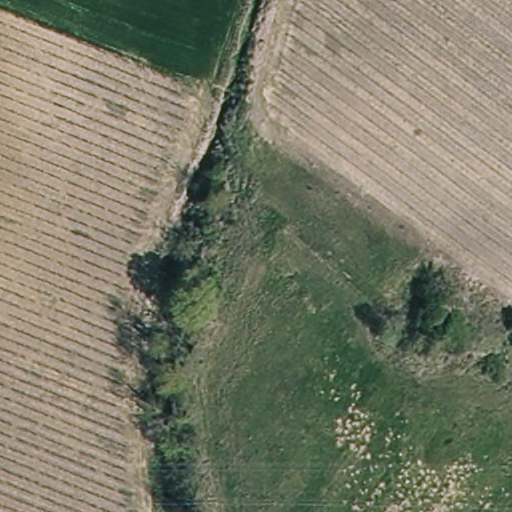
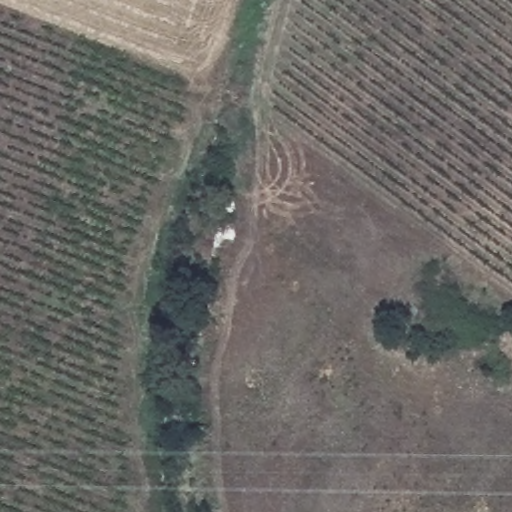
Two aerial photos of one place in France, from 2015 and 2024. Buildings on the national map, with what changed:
[]

